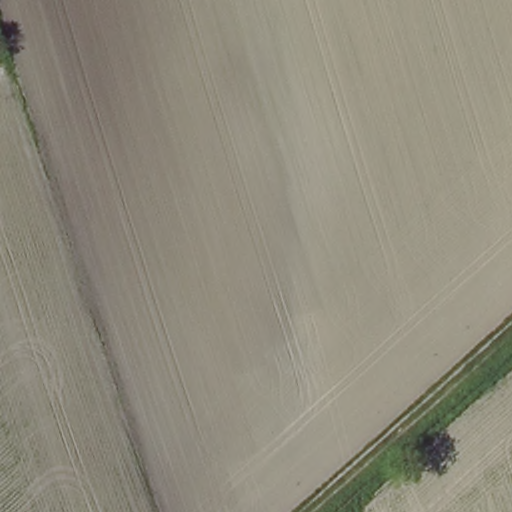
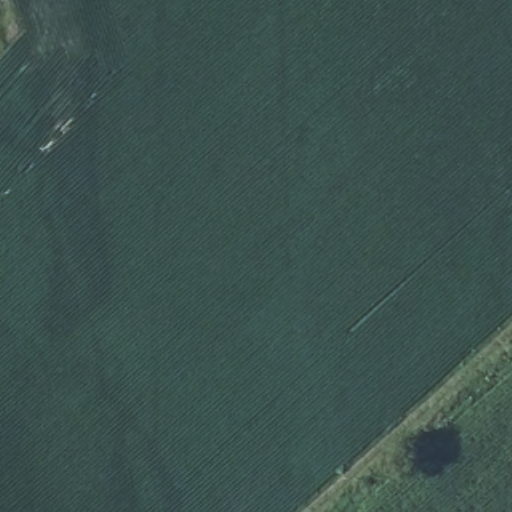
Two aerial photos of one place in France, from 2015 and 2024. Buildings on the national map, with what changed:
[]

